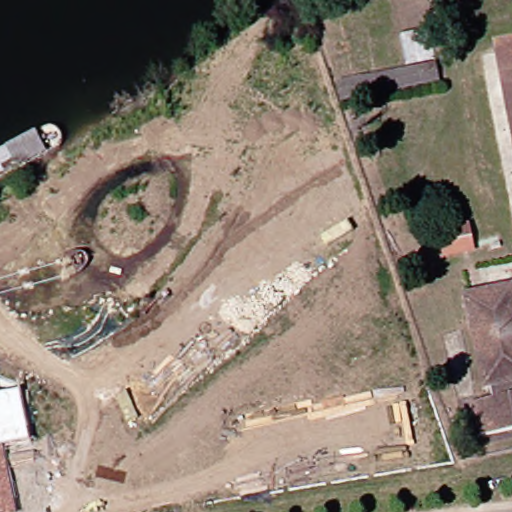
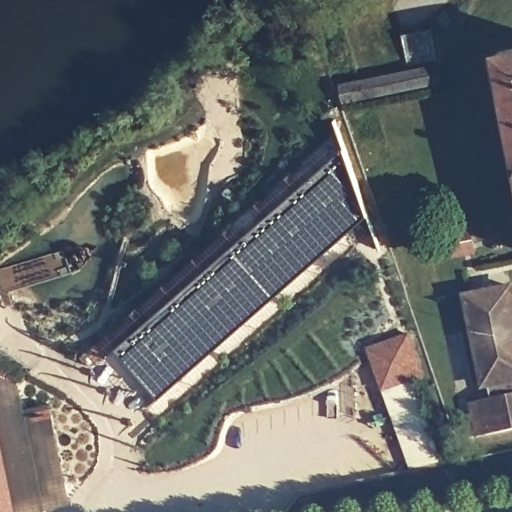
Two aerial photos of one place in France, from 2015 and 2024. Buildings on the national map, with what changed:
unchanged [(438,59),(408,65),(402,35),(419,31),(433,29),(438,59)]
unchanged [(512,48),(512,107),(501,51),(512,48)]
unchanged [(344,102),(340,83),(438,64),(443,84),(344,102)]
new [(343,149),(366,214),(156,397),(114,349),(343,149)]
unchanged [(476,251),(442,260),(437,228),(470,221),(476,251)]
unchanged [(486,439),(479,406),(501,402),(499,389),(494,390),(475,302),(512,295),(512,434),(486,439)]
new [(412,335),(425,378),(384,392),(368,349),(412,335)]
new [(414,381),(443,461),(411,468),(384,392),(414,381)]
new [(28,442),(3,446),(16,512),(0,512),(0,394),(19,391),(28,442)]

